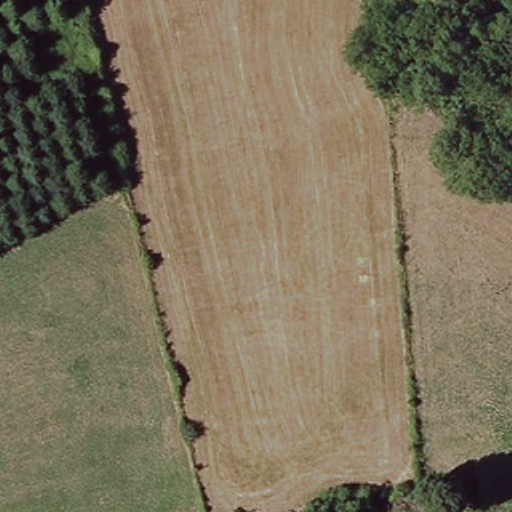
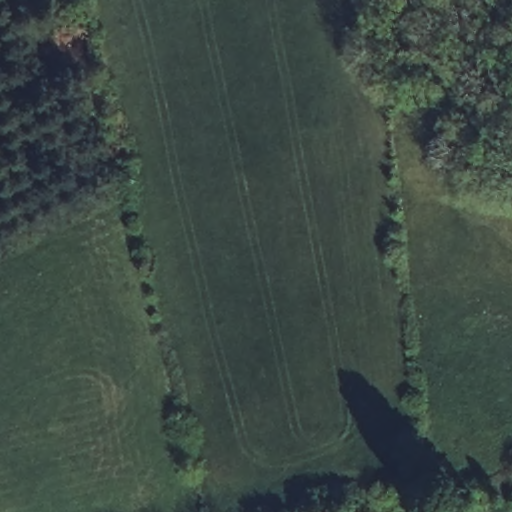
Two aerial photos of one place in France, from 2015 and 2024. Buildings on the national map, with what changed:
unchanged [(358,102),(341,114),(325,89),(342,77),(358,102)]

